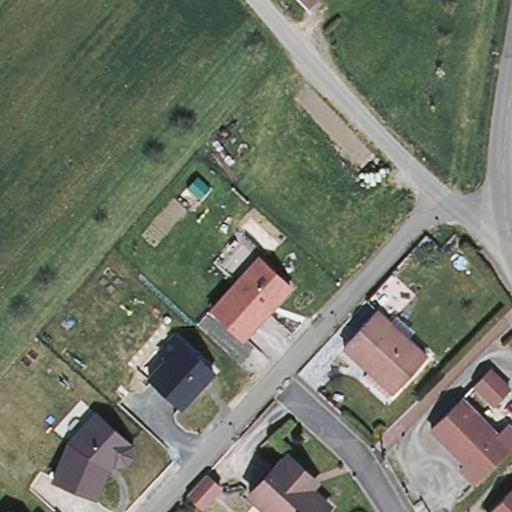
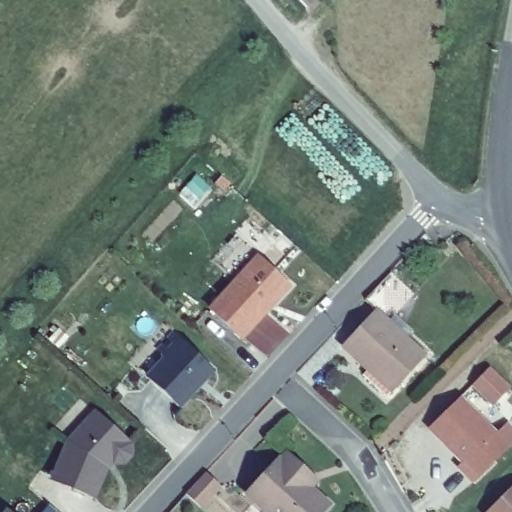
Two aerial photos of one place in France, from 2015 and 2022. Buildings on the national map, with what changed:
unchanged [(308,3),(306,0),(312,0),(308,3)]
unchanged [(257,252),(292,286),(245,340),(207,309),(257,252)]
unchanged [(368,370),(342,346),(375,310),(387,321),(425,356),(397,385),(391,391),(368,370)]
unchanged [(171,351),(167,348),(176,338),(218,373),(183,413),(146,380),(171,351)]
unchanged [(488,367),(507,386),(491,403),(472,383),(488,367)]
unchanged [(463,455),(430,422),(459,392),(495,428),(505,417),(512,424),(512,436),(507,441),(473,476),(458,461),(463,455)]
unchanged [(63,445),(94,412),(131,442),(135,451),(135,459),(130,465),(125,468),(113,468),(99,501),(51,482),(63,445)]
unchanged [(268,512),(248,493),(279,460),(281,463),(287,457),(302,471),(315,482),(310,488),(326,505),(320,512),(268,512)]
unchanged [(205,473),(220,487),(201,508),(186,494),(205,473)]
unchanged [(512,512),(485,512),(512,485),(512,512)]
unchanged [(9,512),(6,512),(7,511),(9,512)]

